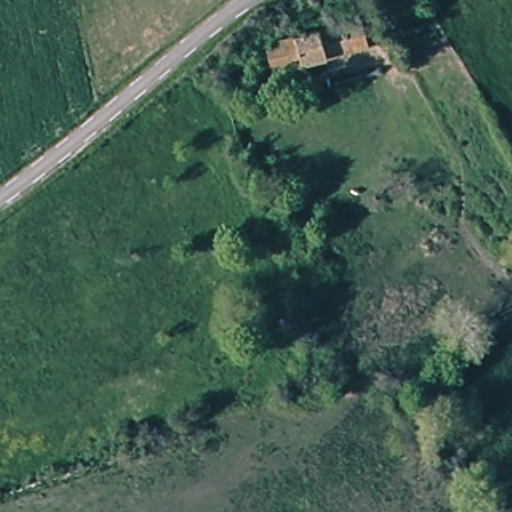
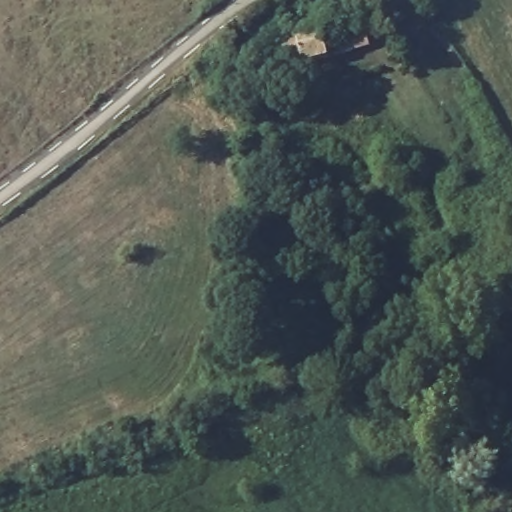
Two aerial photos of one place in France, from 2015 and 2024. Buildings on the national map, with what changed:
unchanged [(373,44),(278,66),(271,40),(366,15),(373,44)]

